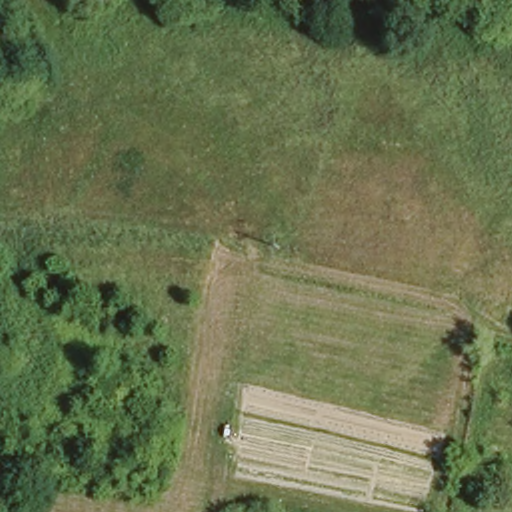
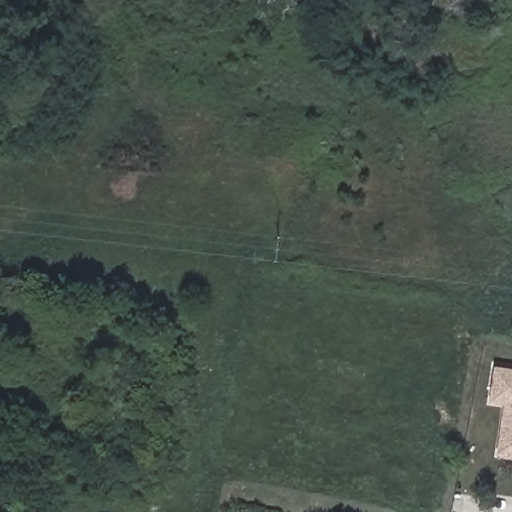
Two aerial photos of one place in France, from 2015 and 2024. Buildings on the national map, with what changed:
new [(503,405),(488,403),(494,365),(512,368),(512,458),(496,456),(503,405)]

